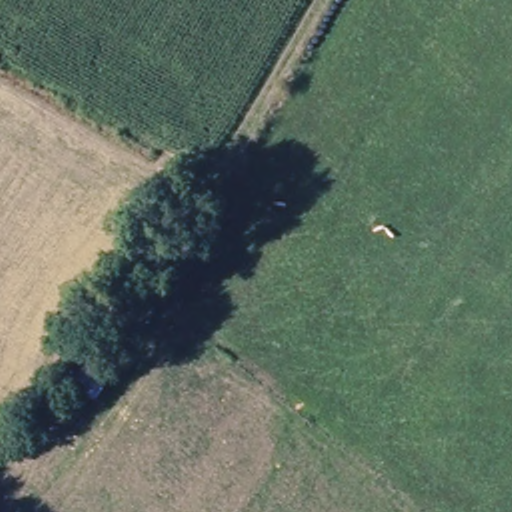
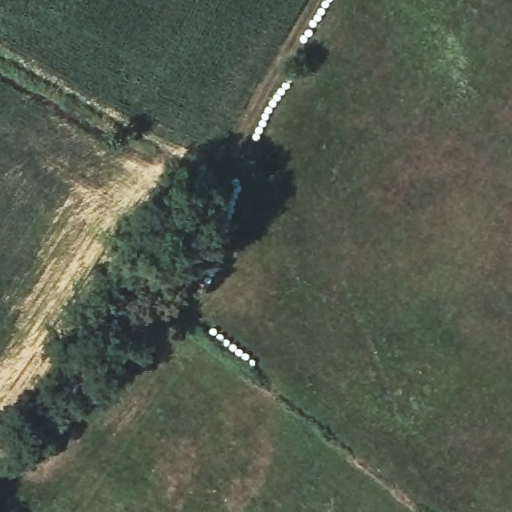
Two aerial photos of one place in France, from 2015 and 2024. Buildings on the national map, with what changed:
unchanged [(133,360),(97,412),(64,393),(105,340),(133,360)]

